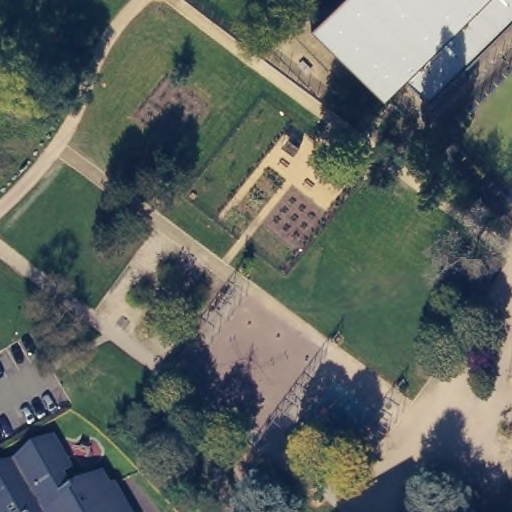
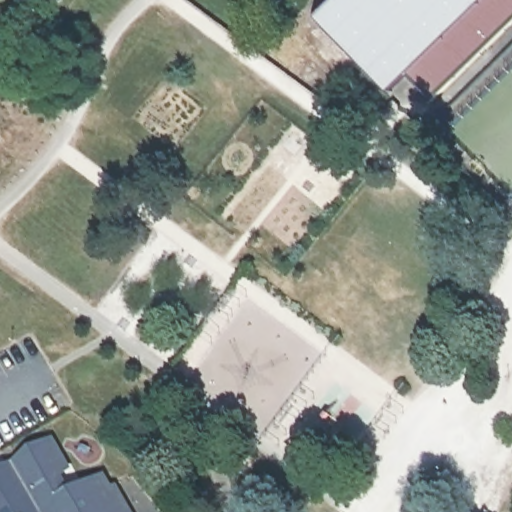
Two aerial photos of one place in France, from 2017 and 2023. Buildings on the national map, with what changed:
unchanged [(405,75),(387,93),(313,19),(323,10),(333,0),(512,0),(512,22),(430,101),(405,75)]
unchanged [(2,495),(0,493),(0,463),(47,436),(62,463),(52,468),(65,492),(100,471),(123,512),(0,512),(0,496),(2,495)]

